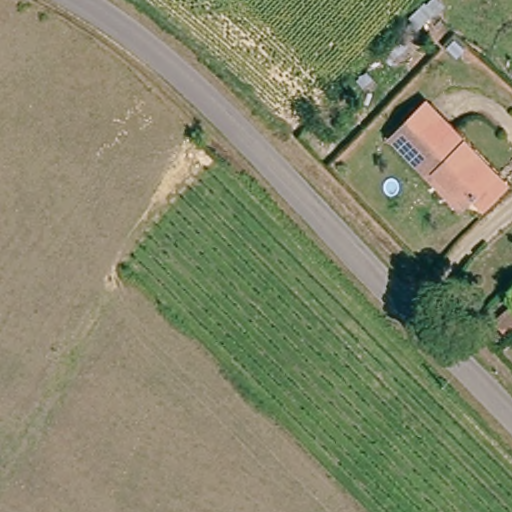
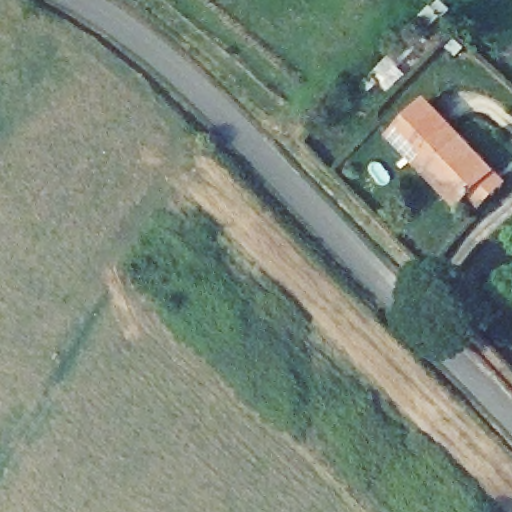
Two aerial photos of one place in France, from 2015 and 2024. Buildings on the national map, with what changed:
unchanged [(480,192),(472,200),(465,207),(433,174),(399,139),(434,105),(500,172),(512,184),(512,187),(492,206),(480,192)]
unchanged [(512,323),(512,338),(505,329),(512,323)]

